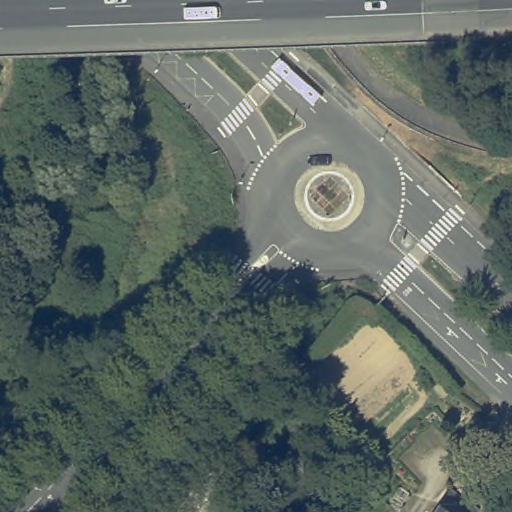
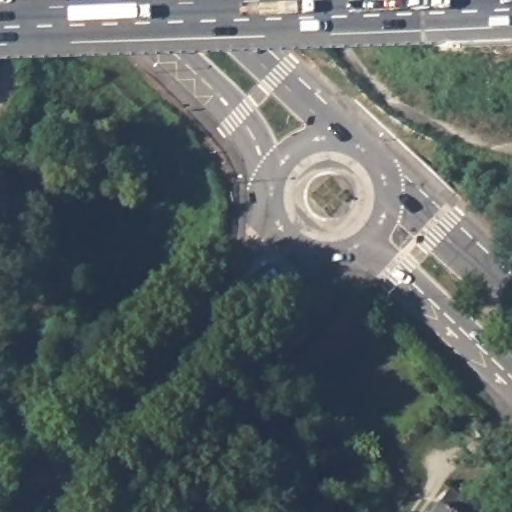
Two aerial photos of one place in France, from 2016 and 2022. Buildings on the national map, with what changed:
unchanged [(443,494),(469,512),(431,512),(443,494)]

